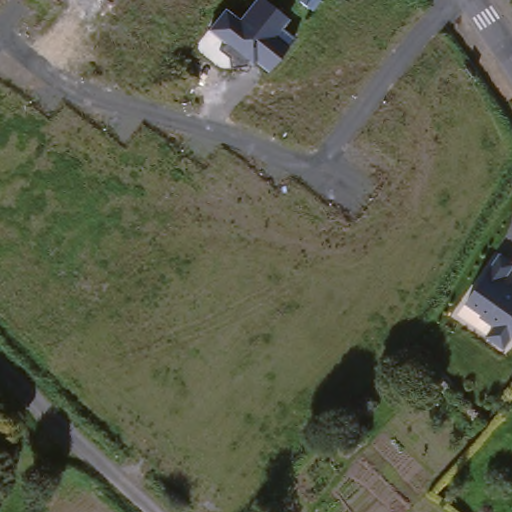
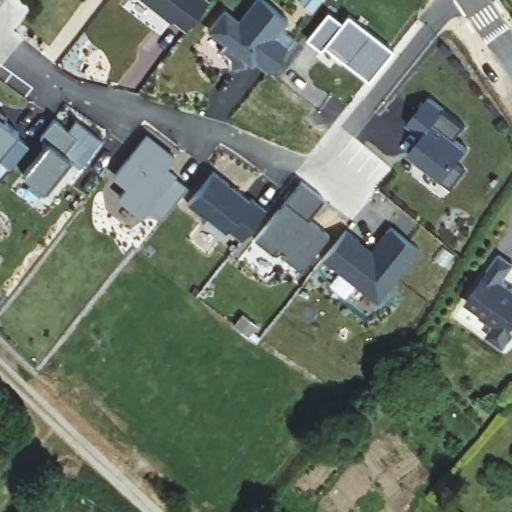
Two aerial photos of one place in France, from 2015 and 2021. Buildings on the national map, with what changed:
new [(170,15),(168,16),(148,0),(203,0),(183,25),(170,15)]
unchanged [(246,61),(246,66),(229,67),(227,57),(218,51),(224,42),(209,29),(224,9),(239,19),(252,0),(262,0),(289,19),(281,29),(294,38),(267,74),(246,61)]
new [(325,45),(321,50),(306,38),(329,12),(342,22),(348,14),(393,50),(368,81),(325,45)]
new [(430,97),(466,127),(455,140),(468,151),(456,165),(466,172),(451,189),(421,164),(426,157),(414,147),(423,136),(408,124),(430,97)]
new [(22,175),(49,142),(39,136),(54,117),(68,130),(74,120),(101,140),(79,167),(69,160),(44,191),(22,175)]
new [(14,130),(12,132),(24,142),(6,165),(0,161),(0,118),(14,130)]
new [(151,207),(142,217),(117,198),(126,187),(114,176),(147,135),(176,155),(167,166),(178,174),(174,179),(186,188),(161,217),(151,207)]
new [(211,168),(247,197),(249,195),(263,206),(239,236),(225,225),(219,234),(200,219),(204,215),(185,200),(211,168)]
new [(284,260),(289,255),(279,246),(273,253),(256,239),(286,203),(301,183),(324,199),(309,219),(330,235),(301,270),(284,260)]
new [(323,260),(346,229),(373,252),(391,227),(421,252),(377,302),(323,260)]
unchanged [(493,325),(481,315),(484,310),(469,298),(505,255),(512,260),(512,274),(506,281),(512,287),(512,338),(511,340),(509,338),(501,348),(486,335),(493,325)]
unchanged [(332,437),(346,423),(361,437),(348,453),(332,437)]

